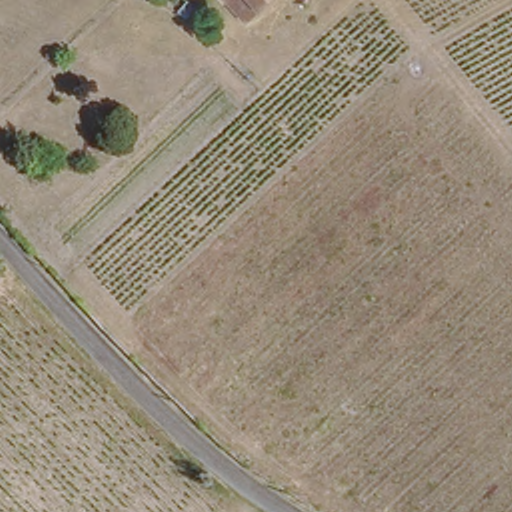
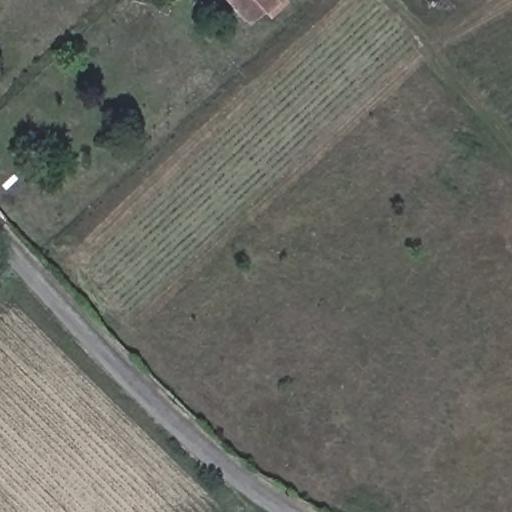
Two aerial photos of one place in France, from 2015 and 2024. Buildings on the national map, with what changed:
unchanged [(244,17),(242,15),(227,0),(265,0),(247,19),(244,17)]

